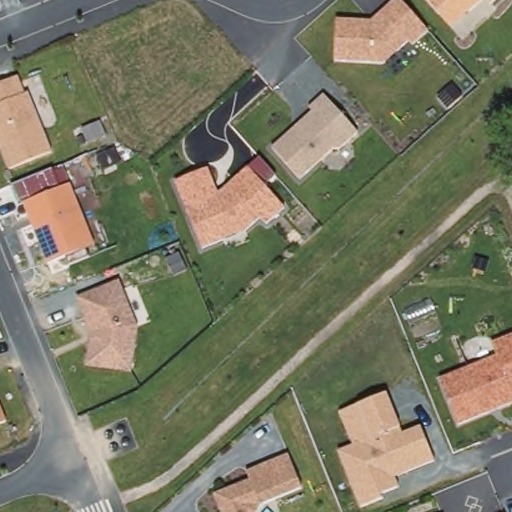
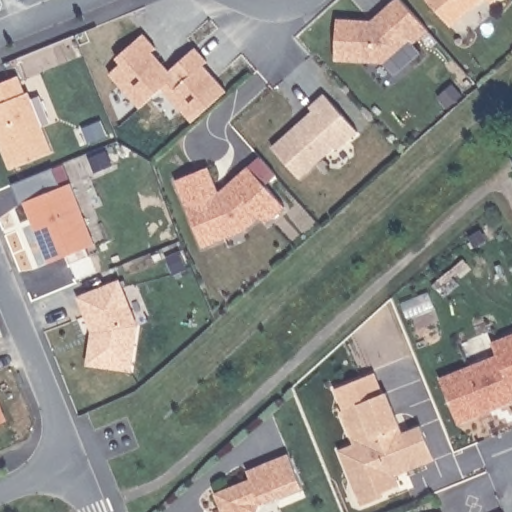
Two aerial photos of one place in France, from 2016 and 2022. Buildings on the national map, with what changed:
unchanged [(370,22),(397,0),(398,0),(429,33),(413,49),(409,44),(385,67),(334,65),(336,17),(370,22)]
unchanged [(440,17),(426,2),(429,0),(484,0),(470,13),(452,30),(440,17)]
unchanged [(492,6),(485,0),(499,0),(492,6)]
new [(191,121),(162,89),(141,107),(110,74),(121,64),(116,58),(144,33),(156,47),(151,52),(169,71),(196,47),(207,60),(202,65),(226,91),(191,121)]
unchanged [(31,92),(54,151),(11,170),(0,144),(0,80),(19,73),(27,94),(31,92)]
unchanged [(309,118),(311,109),(326,98),(357,137),(299,181),(275,150),(309,118)]
unchanged [(94,242),(46,261),(24,205),(20,207),(11,184),(54,169),(61,187),(72,182),(94,242)]
unchanged [(208,170),(218,196),(249,171),(283,211),(265,229),(260,221),(238,238),(200,249),(175,185),(208,170)]
unchanged [(119,282),(141,331),(131,377),(84,369),(90,335),(75,300),(119,282)]
unchanged [(512,333),(512,403),(457,425),(439,376),(496,354),(491,341),(512,333)]
unchanged [(388,391),(403,431),(422,425),(436,461),(396,476),(400,486),(383,494),(384,497),(361,506),(337,450),(352,443),(340,408),(388,391)]
unchanged [(0,424),(0,402),(8,421),(0,424)]
unchanged [(261,506),(258,512),(221,512),(213,492),(250,478),(246,468),(290,451),(303,489),(261,506)]

